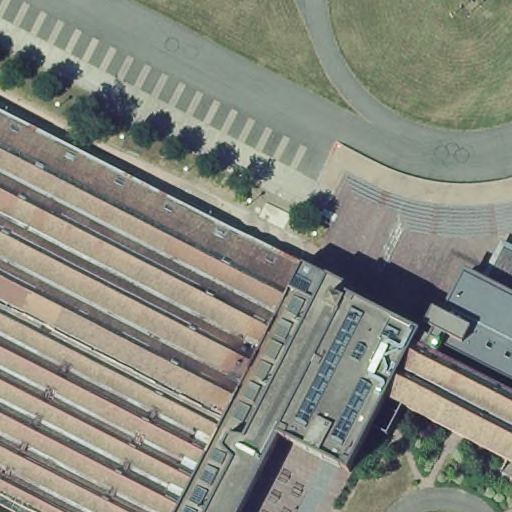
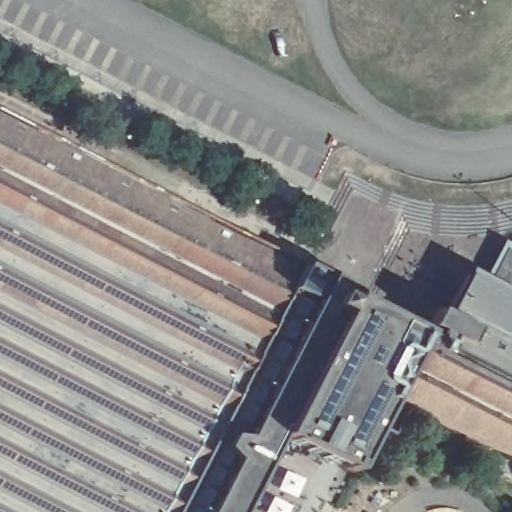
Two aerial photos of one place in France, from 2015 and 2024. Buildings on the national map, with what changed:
unchanged [(237,231),(303,263),(280,437),(241,512),(0,512),(0,110),(158,191),(237,231)]
unchanged [(350,473),(280,437),(303,263),(425,325),(466,277),(512,296),(512,466),(390,398),(350,473)]

